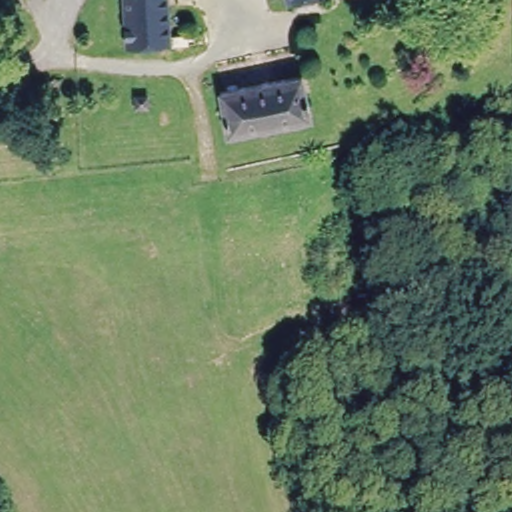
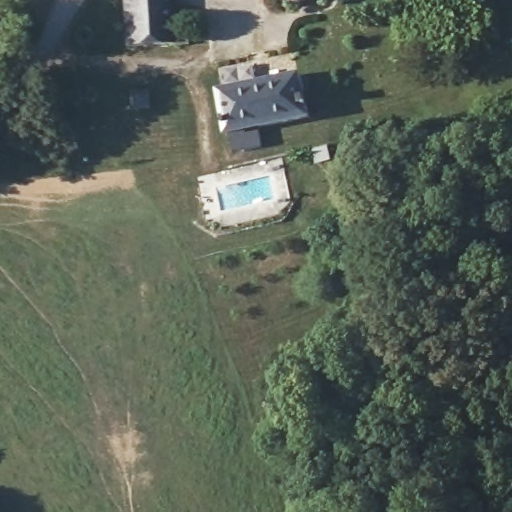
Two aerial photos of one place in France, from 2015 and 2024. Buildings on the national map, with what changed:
unchanged [(181,35),(182,48),(164,48),(164,45),(120,45),(118,0),(162,0),(162,36),(181,35)]
unchanged [(279,0),(297,0),(280,3),(279,0)]
unchanged [(303,117),(221,132),(215,110),(211,87),(293,73),(303,117)]

